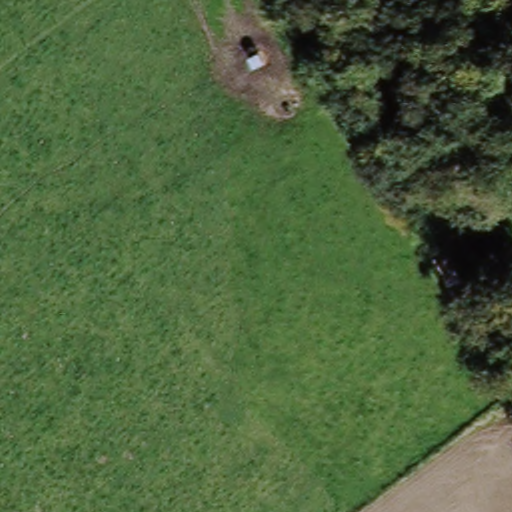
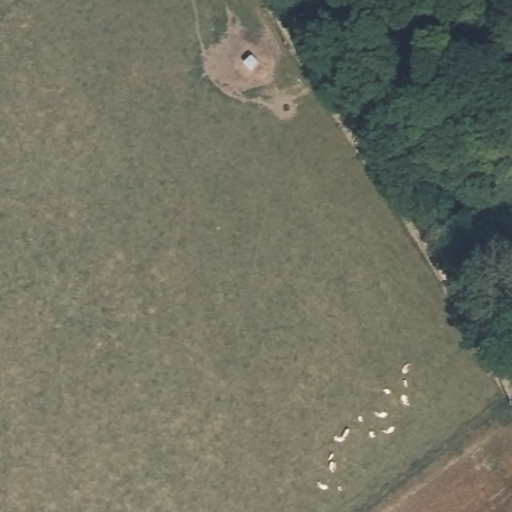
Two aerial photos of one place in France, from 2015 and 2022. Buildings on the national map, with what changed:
[]

